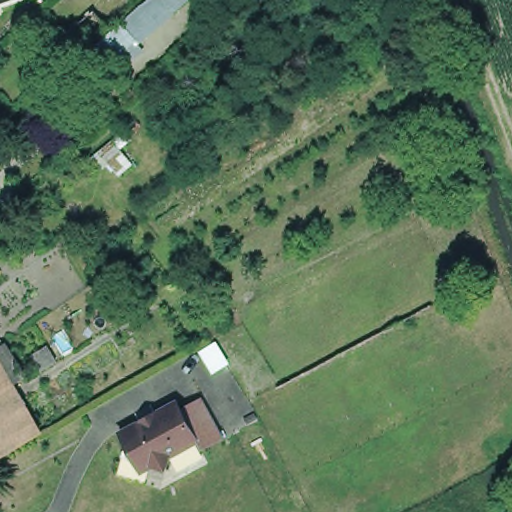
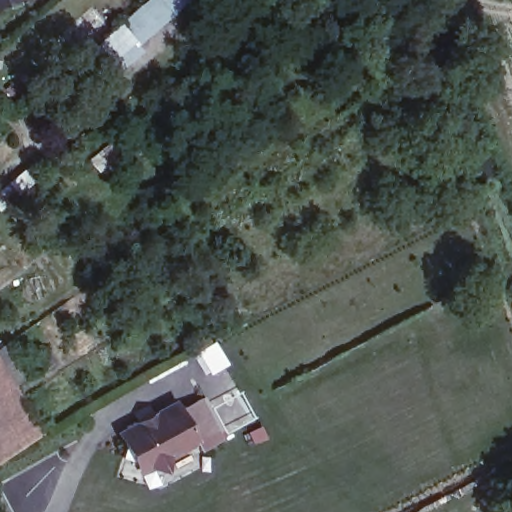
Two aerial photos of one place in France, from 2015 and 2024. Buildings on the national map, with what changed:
unchanged [(0,0),(20,0),(0,7),(0,0)]
unchanged [(102,72),(101,73),(88,78),(73,63),(85,53),(143,3),(147,0),(167,0),(175,8),(175,9),(160,22),(140,39),(145,46),(107,76),(102,72)]
unchanged [(174,0),(183,0),(178,5),(174,0)]
unchanged [(0,456),(0,363),(46,432),(0,456)]
unchanged [(165,469),(136,461),(121,457),(125,444),(118,433),(175,402),(179,410),(200,399),(212,420),(221,438),(200,450),(195,442),(168,455),(165,469)]

